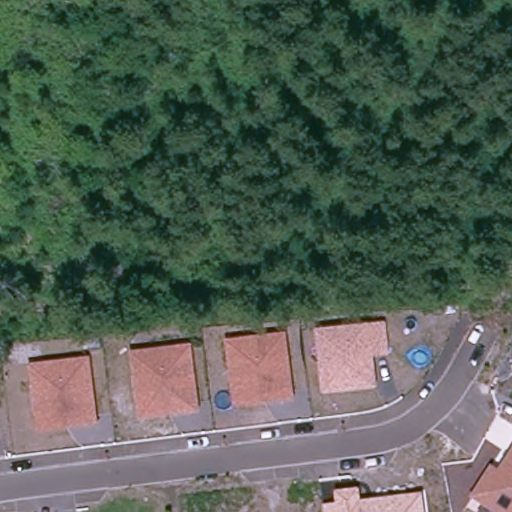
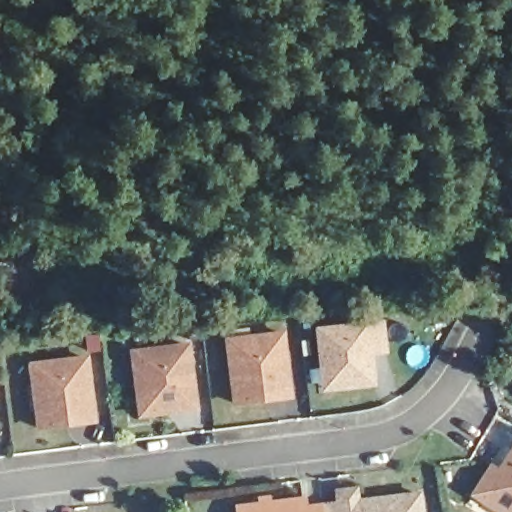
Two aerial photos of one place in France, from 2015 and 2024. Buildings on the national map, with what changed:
unchanged [(385,321),(390,354),(373,357),(377,389),(322,395),(315,329),(368,323),(385,321)]
unchanged [(235,408),(225,340),(285,333),(294,401),(235,408)]
unchanged [(199,411),(139,419),(128,352),(192,342),(199,411)]
unchanged [(98,424),(36,433),(26,363),(89,356),(98,424)]
unchanged [(512,449),(512,512),(497,512),(472,496),(491,463),(500,469),(512,449)]
unchanged [(333,489),(359,485),(362,498),(424,491),(426,512),(324,512),(323,505),(335,503),(333,489)]
new [(323,505),(324,512),(237,512),(236,505),(259,502),(258,498),(272,495),(273,500),(307,496),(308,505),(323,505)]

